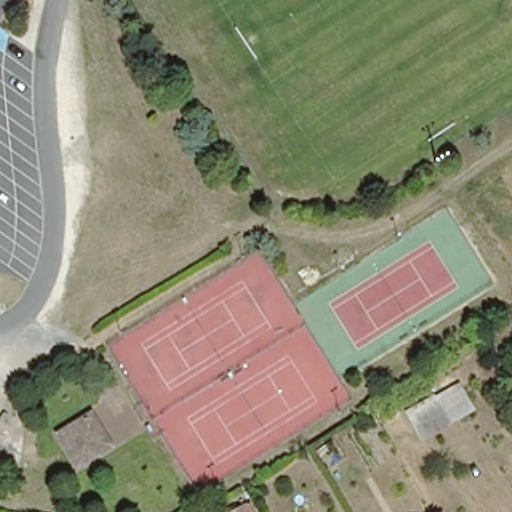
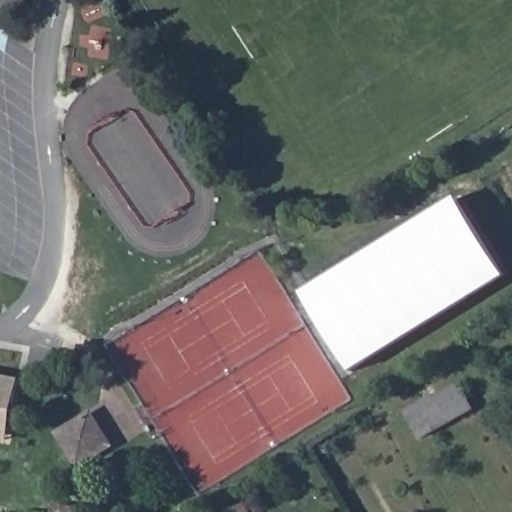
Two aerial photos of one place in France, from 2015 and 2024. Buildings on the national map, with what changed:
new [(304,293),(459,197),(509,277),(354,372),(304,293)]
new [(0,442),(0,375),(20,378),(8,444),(0,442)]
unchanged [(433,395),(453,383),(468,407),(421,435),(404,407),(430,391),(433,395)]
unchanged [(92,412),(104,432),(112,444),(81,465),(73,452),(60,434),(92,412)]

